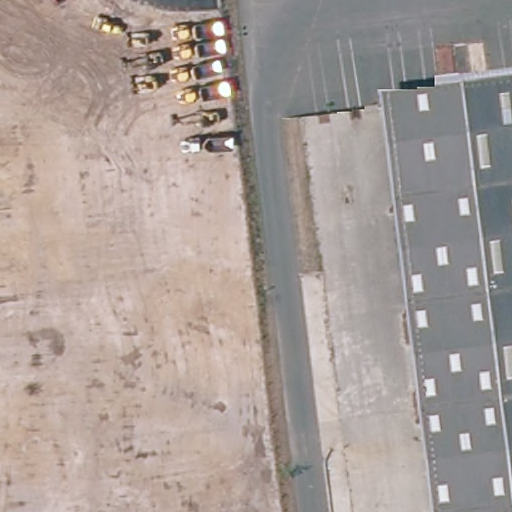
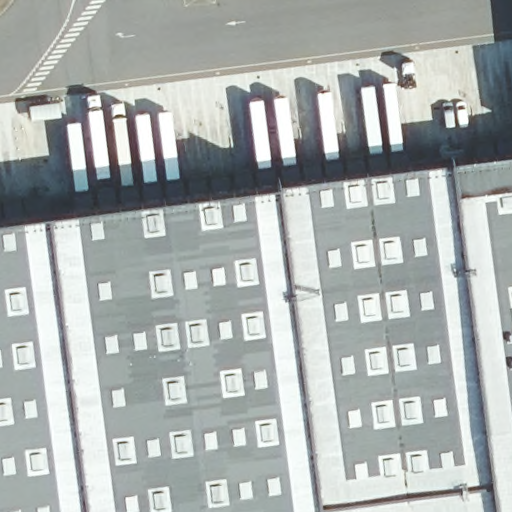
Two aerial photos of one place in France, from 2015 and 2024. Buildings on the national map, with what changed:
new [(375,83),(384,151),(393,149),(385,81),(397,79),(408,161),(373,165),(363,84),(375,83)]
demolished [(512,90),(512,512),(424,512),(373,107),(512,90)]
new [(512,152),(512,512),(0,512),(0,216),(280,180),(454,160),(512,152)]

